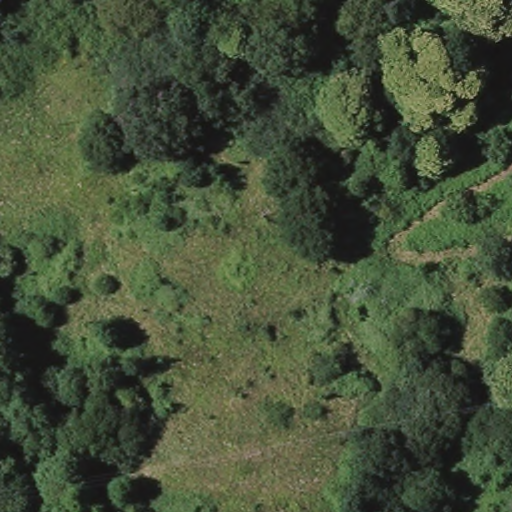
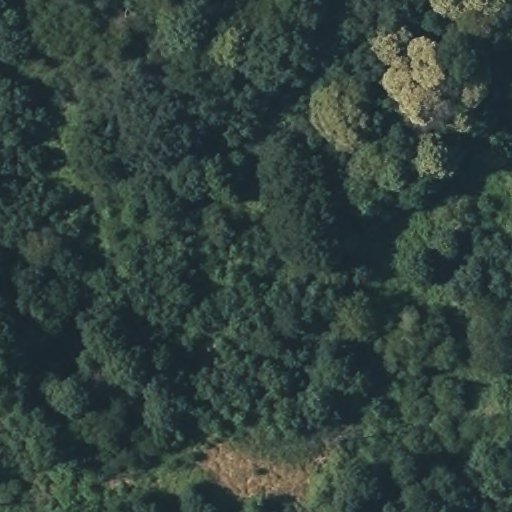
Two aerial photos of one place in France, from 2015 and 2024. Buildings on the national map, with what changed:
[]

